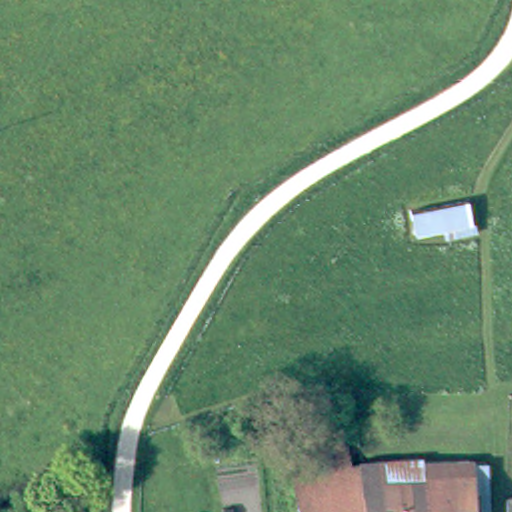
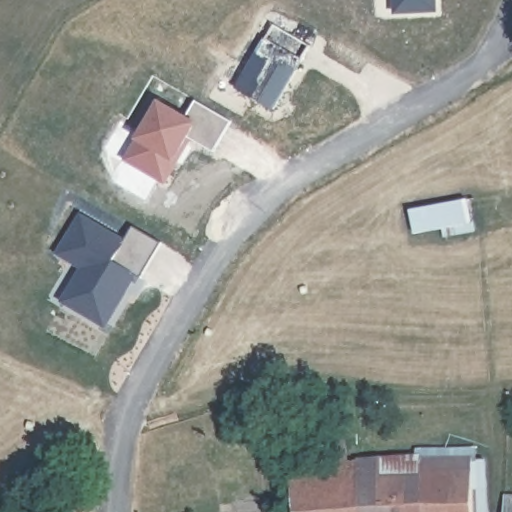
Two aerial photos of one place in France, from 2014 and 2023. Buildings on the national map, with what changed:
new [(396,0),(437,0),(438,10),(414,12),(397,13),(396,0)]
new [(271,25),(311,46),(274,110),(235,88),(271,25)]
new [(191,137),(178,159),(163,185),(123,160),(135,139),(158,100),(186,116),(195,101),(232,121),(214,151),(191,137)]
unchanged [(479,232),(456,236),(456,230),(416,236),(414,210),(474,199),(479,232)]
new [(141,277),(136,275),(106,327),(60,301),(79,268),(55,254),(80,211),(125,239),(133,225),(162,242),(141,277)]
unchanged [(321,439),(354,440),(354,455),(364,455),(370,512),(303,512),(295,457),(321,453),(321,439)]
unchanged [(481,512),(370,512),(364,455),(478,452),(481,512)]
unchanged [(512,502),(512,512),(511,512),(511,502),(512,502)]

